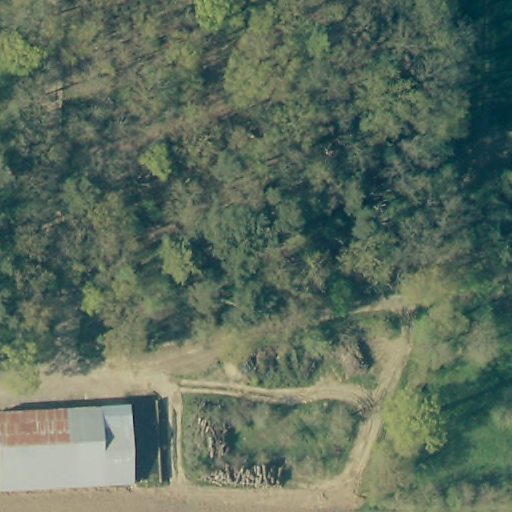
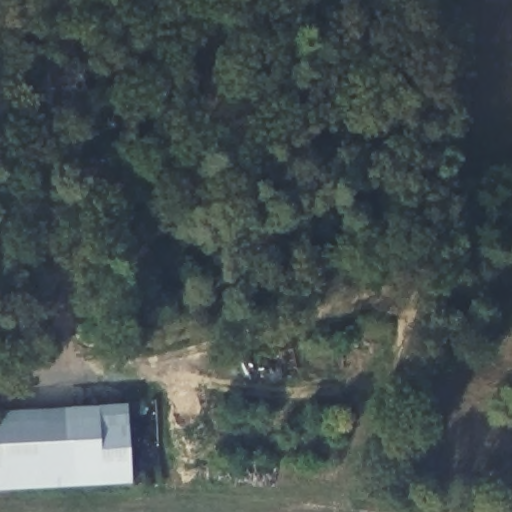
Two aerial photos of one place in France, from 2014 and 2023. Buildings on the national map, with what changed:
unchanged [(127,405),(131,485),(0,491),(0,411),(127,405)]

